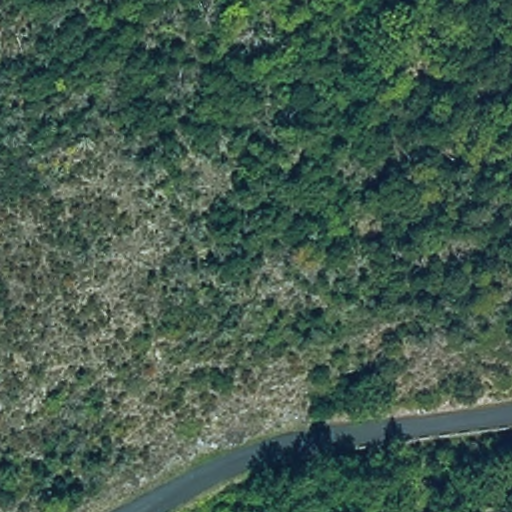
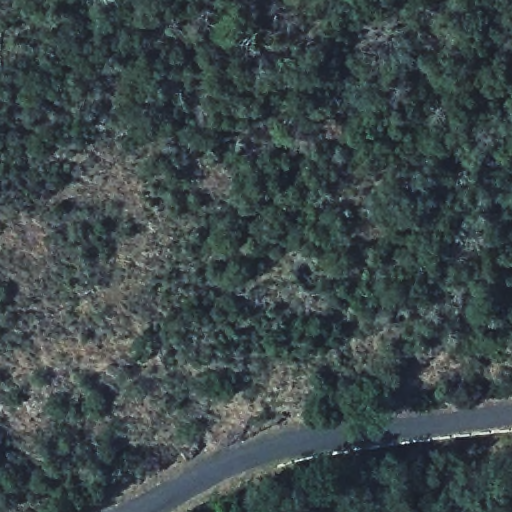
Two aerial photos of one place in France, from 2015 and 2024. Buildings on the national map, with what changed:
[]

